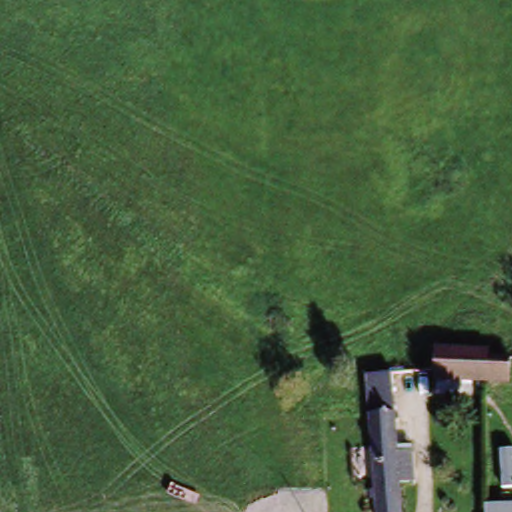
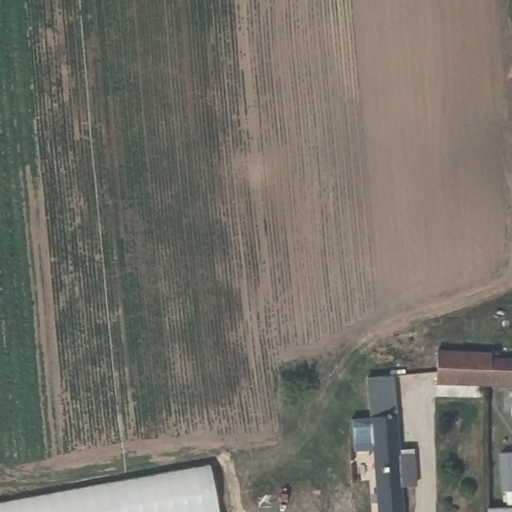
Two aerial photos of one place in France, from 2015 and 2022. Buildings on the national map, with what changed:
unchanged [(510,372),(436,378),(433,354),(467,351),(508,348),(510,372)]
unchanged [(408,449),(410,483),(395,484),(396,512),(371,512),(365,384),(364,376),(388,375),(403,373),(404,382),(405,392),(390,393),(391,449),(408,449)]
new [(219,512),(0,512),(0,503),(211,464),(219,512)]
unchanged [(488,507),(512,507),(512,512),(488,512),(488,507)]

